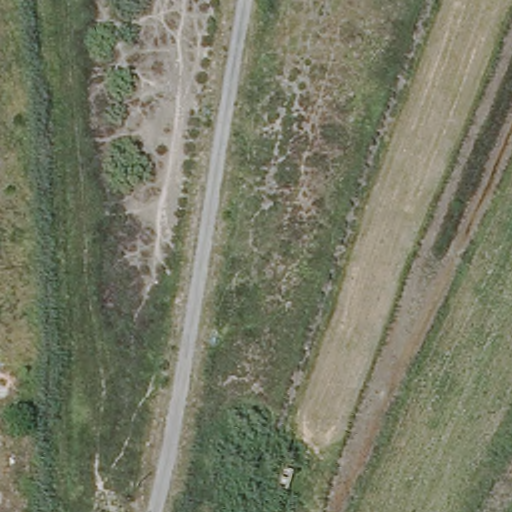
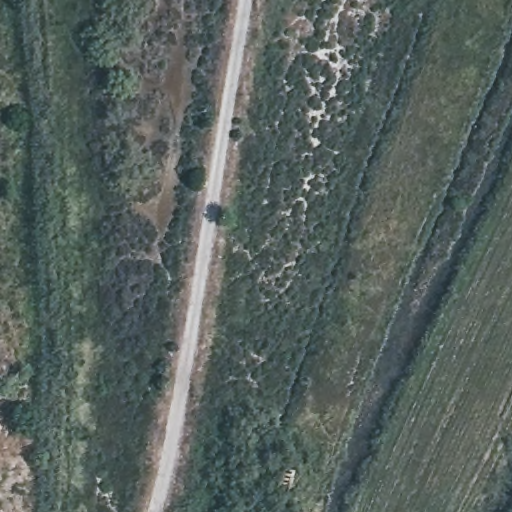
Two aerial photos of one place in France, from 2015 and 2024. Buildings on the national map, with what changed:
[]

